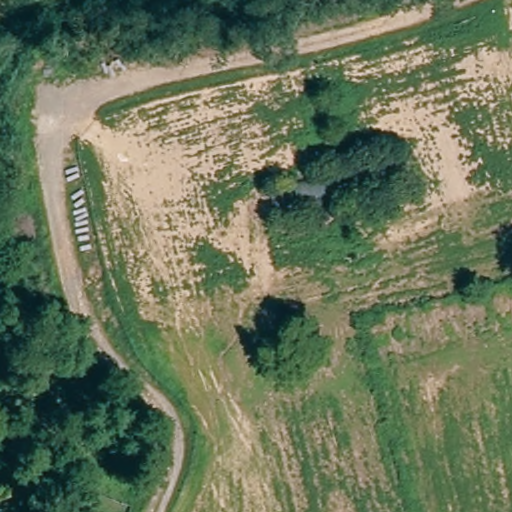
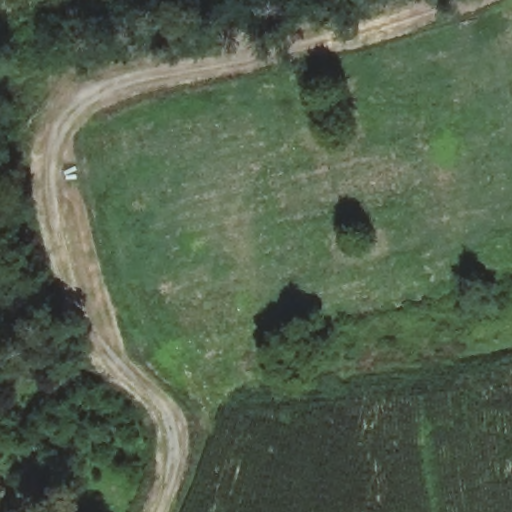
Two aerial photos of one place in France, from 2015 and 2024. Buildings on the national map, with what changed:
unchanged [(266,186),(400,154),(410,190),(278,228),(266,186)]

